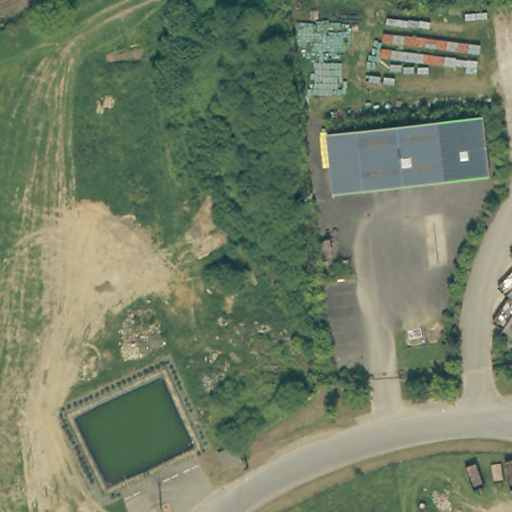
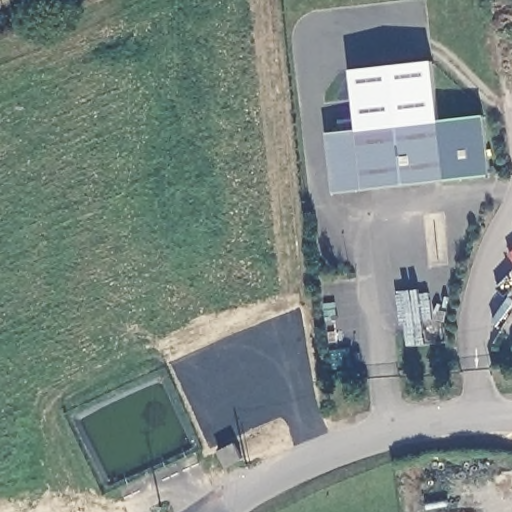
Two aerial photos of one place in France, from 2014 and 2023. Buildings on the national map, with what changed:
new [(351,70),(432,60),(438,119),(357,127),(351,70)]
unchanged [(487,115),(491,179),(468,181),(334,193),(328,130),(468,117),(487,115)]

